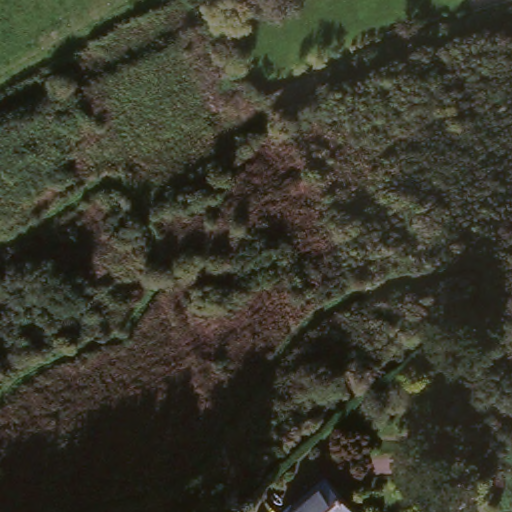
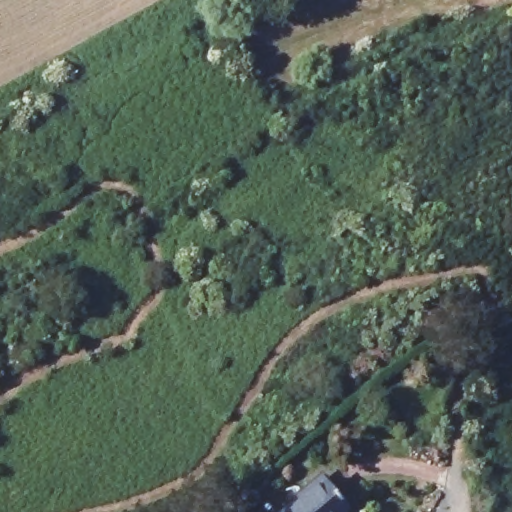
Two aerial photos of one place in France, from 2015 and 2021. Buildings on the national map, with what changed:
unchanged [(346,507),(341,512),(280,512),(318,476),(346,507)]

